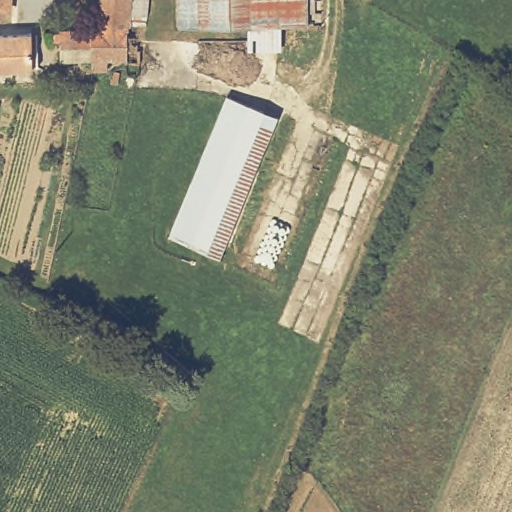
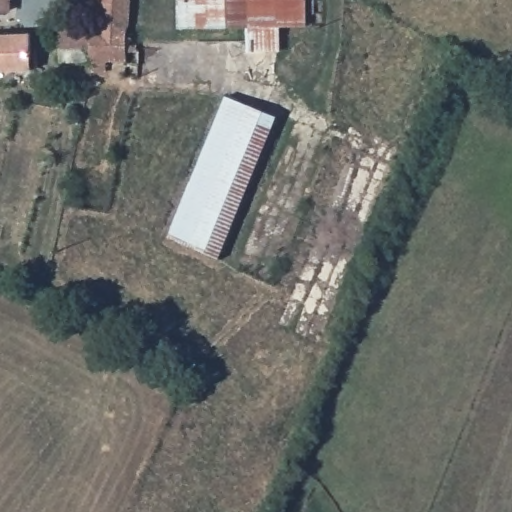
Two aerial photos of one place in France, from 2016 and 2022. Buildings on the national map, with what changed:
unchanged [(12,12),(0,12),(0,0),(13,0),(12,12)]
unchanged [(147,21),(133,20),(132,28),(100,25),(101,0),(149,0),(147,21)]
unchanged [(250,49),(249,22),(180,24),(180,0),(309,0),(310,21),(283,22),(283,48),(250,49)]
unchanged [(132,32),(139,33),(139,47),(143,47),(142,64),(109,63),(109,68),(95,67),(95,63),(95,57),(63,57),(63,37),(49,37),(49,27),(61,27),(61,24),(100,25),(132,28),(132,32)]
unchanged [(32,33),(35,70),(0,72),(0,35),(32,33)]
unchanged [(280,117),(222,258),(170,238),(229,97),(280,117)]

